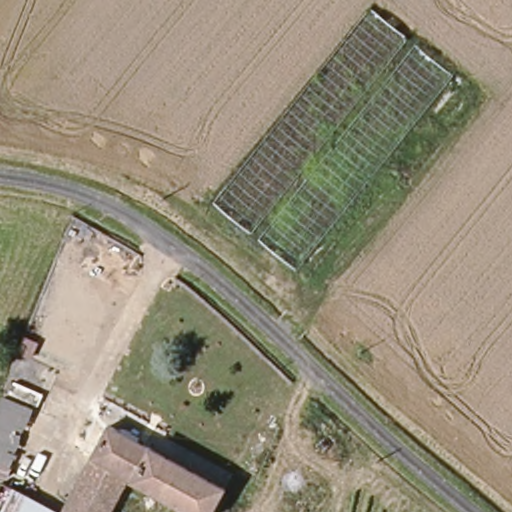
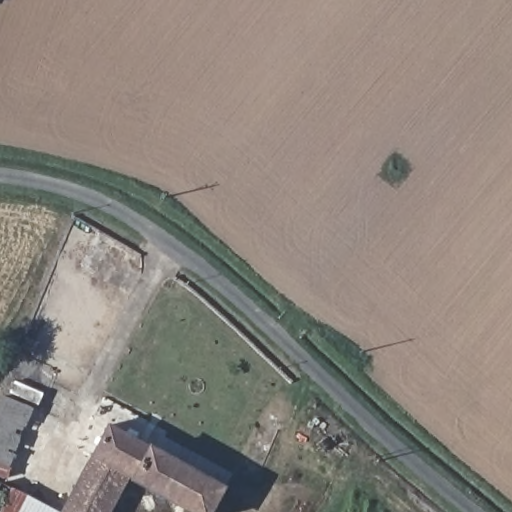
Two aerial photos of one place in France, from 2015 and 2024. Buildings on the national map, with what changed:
demolished [(370,8),(452,77),(293,270),(213,202),(370,8)]
unchanged [(10,386),(37,397),(20,442),(0,434),(0,410),(10,386)]
unchanged [(228,488),(212,512),(195,512),(186,507),(174,500),(132,478),(114,512),(65,512),(111,423),(228,488)]
unchanged [(20,442),(10,465),(0,461),(0,434),(20,442)]
unchanged [(0,512),(0,485),(1,482),(30,498),(23,512),(0,512)]
unchanged [(23,512),(30,498),(55,512),(23,512)]

